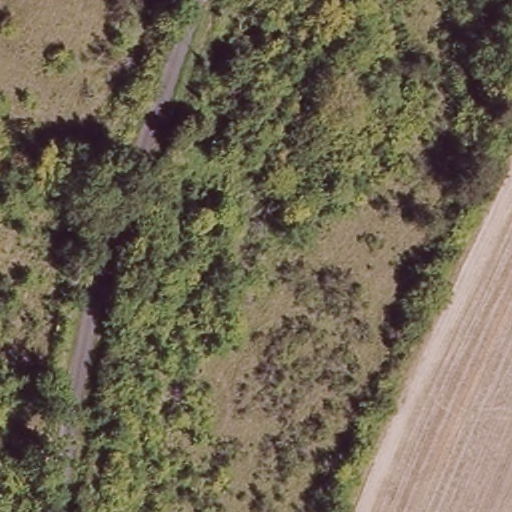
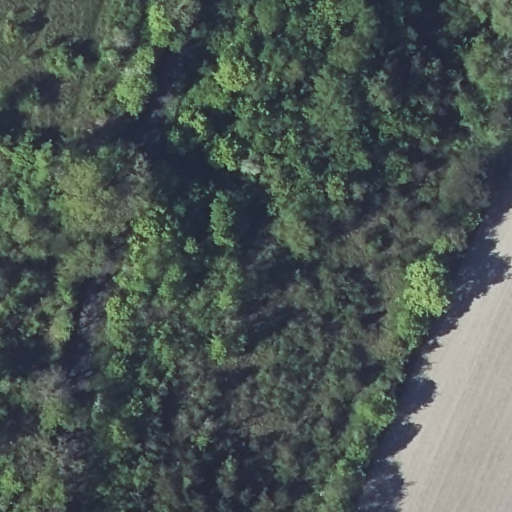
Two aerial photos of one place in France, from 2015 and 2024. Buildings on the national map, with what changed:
[]

